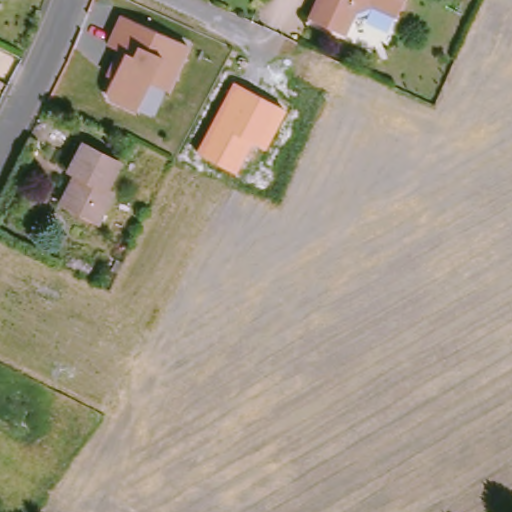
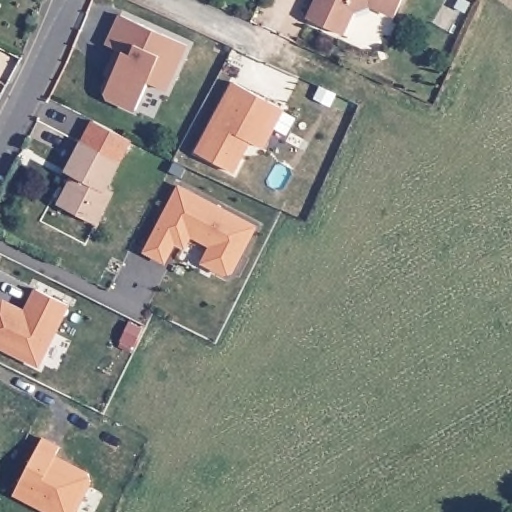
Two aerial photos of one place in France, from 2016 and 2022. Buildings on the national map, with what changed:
unchanged [(338,30),(304,15),(311,0),(365,0),(349,6),(338,30)]
unchanged [(369,0),(396,0),(392,10),(369,0)]
unchanged [(167,87),(147,77),(134,110),(105,97),(105,88),(111,73),(105,70),(117,45),(104,41),(117,10),(189,43),(167,87)]
unchanged [(232,81),(259,96),(284,109),(265,148),(252,141),(235,173),(195,151),(232,81)]
unchanged [(95,222),(58,202),(72,174),(65,170),(80,140),(115,161),(101,190),(110,195),(95,222)]
new [(143,252),(179,184),(257,226),(232,274),(224,276),(200,262),(208,246),(191,238),(185,249),(175,244),(165,264),(143,252)]
new [(40,366),(0,348),(0,300),(4,299),(25,309),(35,288),(70,305),(40,366)]
new [(43,437),(60,445),(57,455),(89,472),(92,479),(76,512),(47,512),(14,495),(43,437)]

